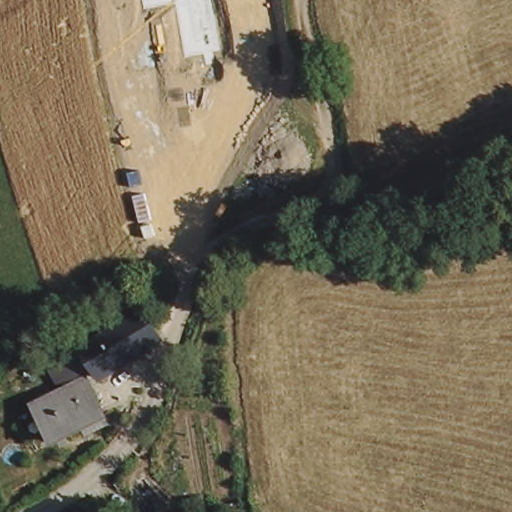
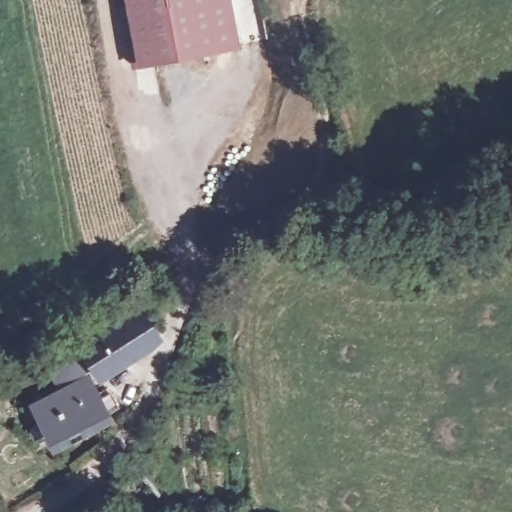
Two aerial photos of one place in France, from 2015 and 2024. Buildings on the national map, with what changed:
new [(135,68),(132,69),(120,8),(125,7),(123,0),(231,0),(240,48),(135,68)]
unchanged [(140,316),(158,340),(147,348),(100,382),(78,352),(129,322),(140,316)]
unchanged [(100,422),(55,443),(35,405),(80,381),(100,422)]

